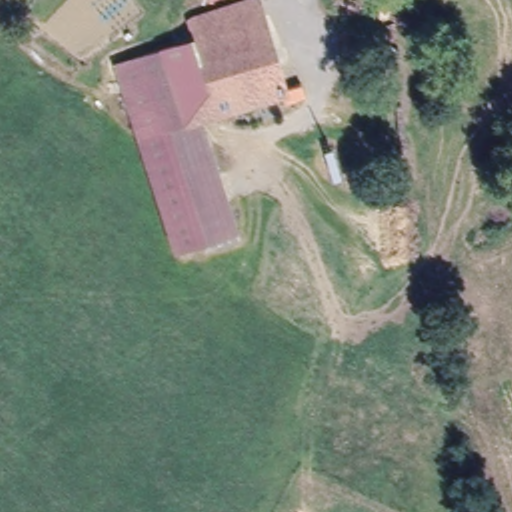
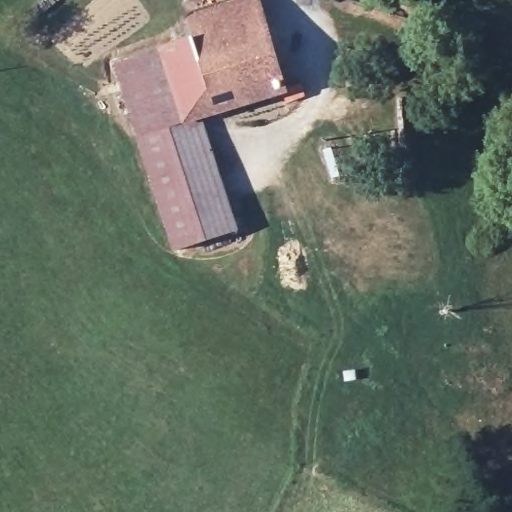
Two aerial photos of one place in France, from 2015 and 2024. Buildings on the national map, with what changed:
unchanged [(315,80),(296,87),(291,78),(198,116),(178,124),(151,49),(181,39),(177,20),(222,0),(260,0),(291,75),(309,65),(315,80)]
unchanged [(244,224),(184,252),(102,70),(151,49),(178,124),(198,116),(244,224)]

